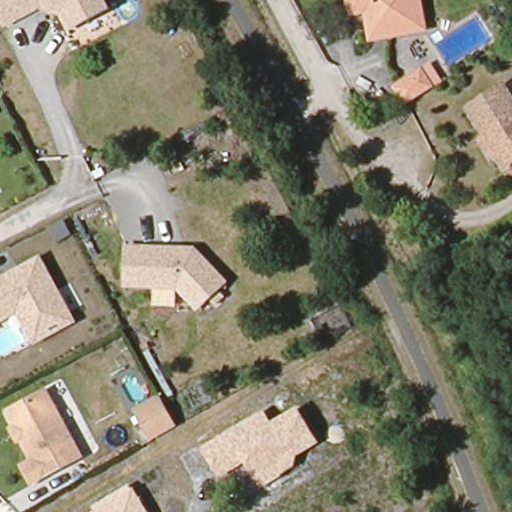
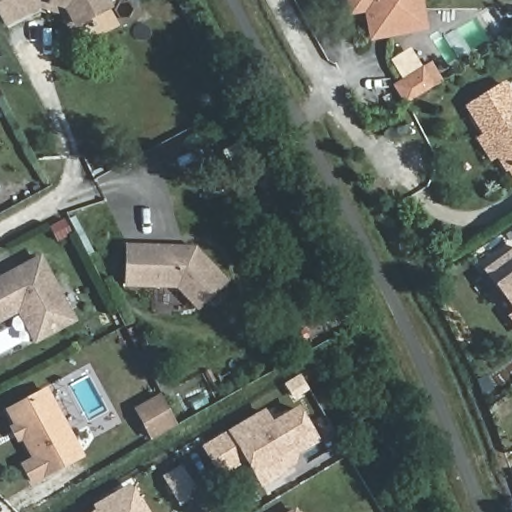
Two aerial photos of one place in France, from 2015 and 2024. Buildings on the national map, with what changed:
unchanged [(42,5),(8,24),(0,8),(0,0),(107,0),(110,7),(78,25),(72,27),(65,12),(42,5)]
unchanged [(400,40),(372,45),(367,17),(352,20),(349,0),(420,0),(426,35),(400,40)]
unchanged [(431,64),(442,82),(436,85),(408,103),(397,85),(431,64)]
unchanged [(507,167),(500,156),(491,161),(481,145),(490,140),(469,107),(505,85),(512,98),(512,175),(507,167)]
unchanged [(221,278),(195,302),(175,281),(125,280),(126,242),(192,245),(221,278)]
new [(485,272),(512,253),(512,309),(485,272)]
unchanged [(16,313),(0,322),(0,276),(41,254),(79,321),(34,345),(16,313)]
new [(510,319),(512,317),(512,322),(510,319)]
unchanged [(48,390),(60,411),(83,455),(35,481),(26,465),(38,459),(25,435),(20,438),(19,436),(15,429),(20,426),(11,410),(48,390)]
unchanged [(175,426),(175,427),(174,427),(155,440),(136,411),(157,397),(175,426)]
unchanged [(297,456),(296,466),(261,487),(245,462),(221,476),(204,446),(265,410),(271,420),(298,405),(321,442),(297,456)]
unchanged [(96,510),(92,505),(131,483),(134,489),(136,487),(151,512),(92,512),(96,510)]
new [(296,507),(299,512),(288,512),(296,507)]

